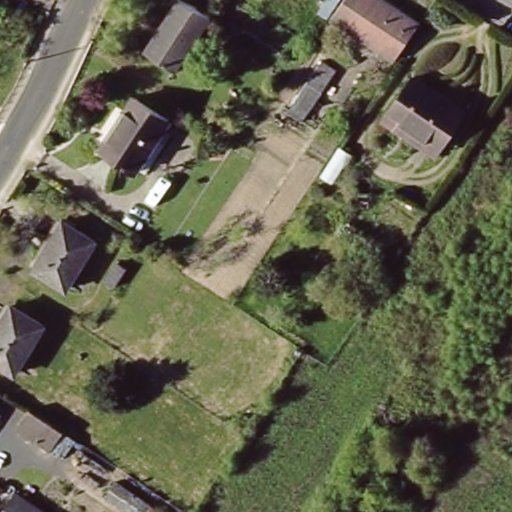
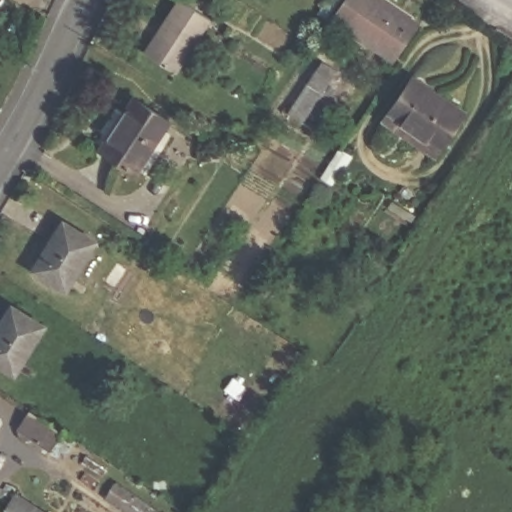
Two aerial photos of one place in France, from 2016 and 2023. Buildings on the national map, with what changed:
unchanged [(180,71),(147,50),(180,0),(188,0),(215,17),(180,71)]
unchanged [(397,62),(345,29),(331,19),(344,0),(379,0),(421,26),(397,62)]
unchanged [(322,57),(335,65),(294,127),(281,119),(322,57)]
unchanged [(384,110),(407,76),(462,113),(440,147),(434,156),(377,120),(384,110)]
unchanged [(136,170),(135,171),(101,150),(132,100),(167,120),(160,131),(136,170)]
unchanged [(94,241),(65,290),(33,270),(62,222),(94,241)]
unchanged [(102,281),(114,262),(124,268),(112,287),(102,281)]
unchanged [(44,327),(15,375),(0,366),(0,329),(12,308),(44,327)]
unchanged [(49,449),(17,428),(30,408),(37,413),(62,430),(49,449)]
unchanged [(128,512),(105,496),(117,480),(165,512),(128,512)]
unchanged [(60,512),(3,512),(19,486),(60,512)]

